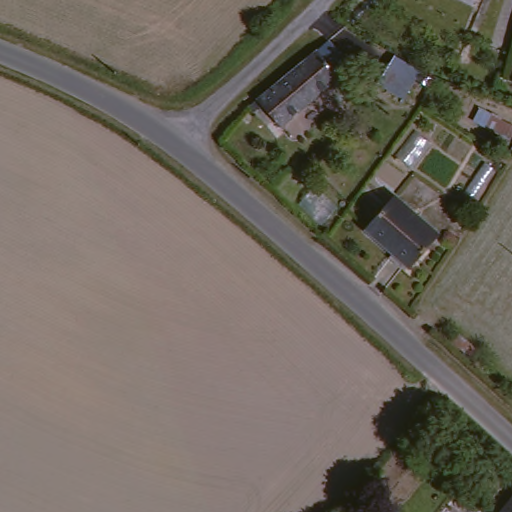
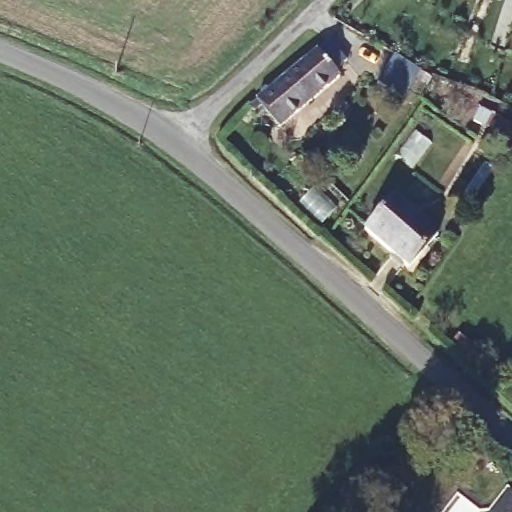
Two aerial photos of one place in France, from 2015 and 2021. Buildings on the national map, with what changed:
unchanged [(340,75),(280,126),(257,97),(319,48),(340,75)]
unchanged [(427,69),(415,96),(382,81),(396,52),(427,69)]
unchanged [(435,241),(408,271),(365,232),(391,202),(435,241)]
unchanged [(512,512),(504,512),(512,502),(512,512)]

